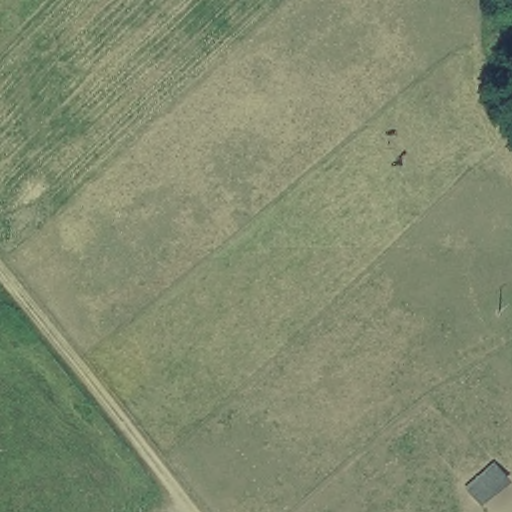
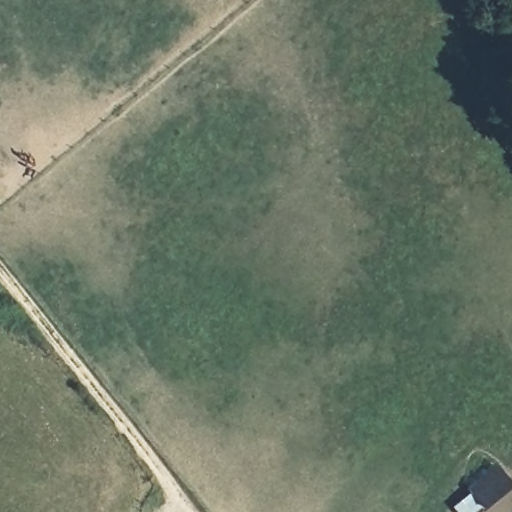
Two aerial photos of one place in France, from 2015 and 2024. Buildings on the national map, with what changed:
unchanged [(512,491),(485,506),(473,486),(503,465),(512,482),(512,491)]

